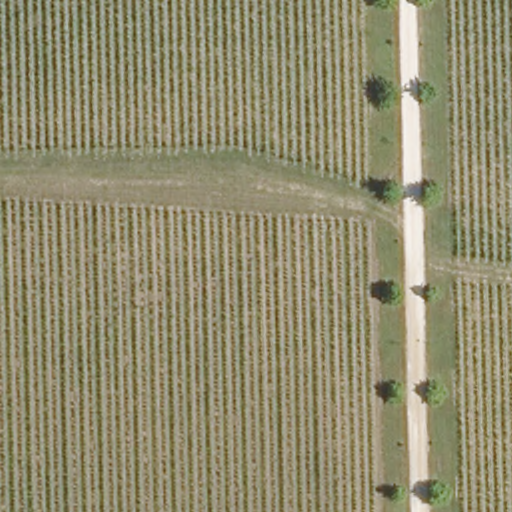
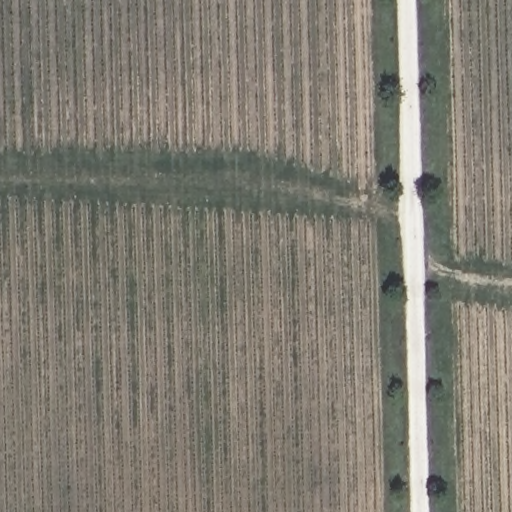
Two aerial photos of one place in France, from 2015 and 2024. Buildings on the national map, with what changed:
[]

